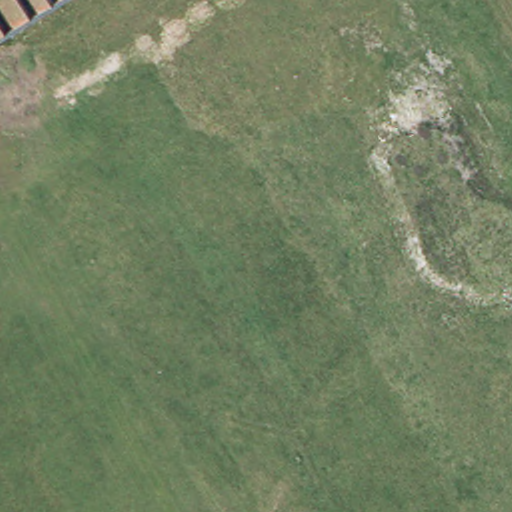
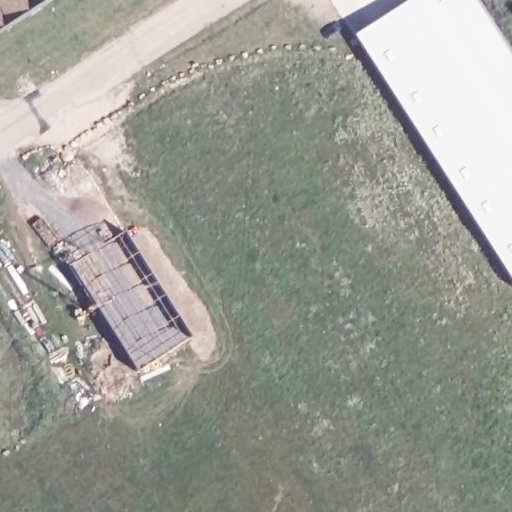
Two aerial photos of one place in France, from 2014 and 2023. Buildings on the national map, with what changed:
unchanged [(63,0),(0,39),(0,0),(63,0)]
new [(406,0),(479,0),(512,52),(512,281),(354,34),(406,0)]

